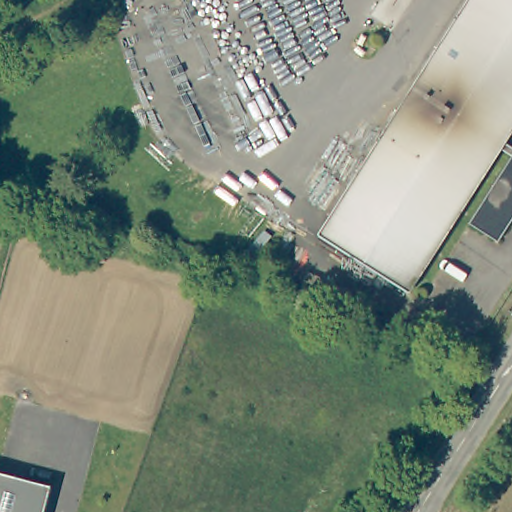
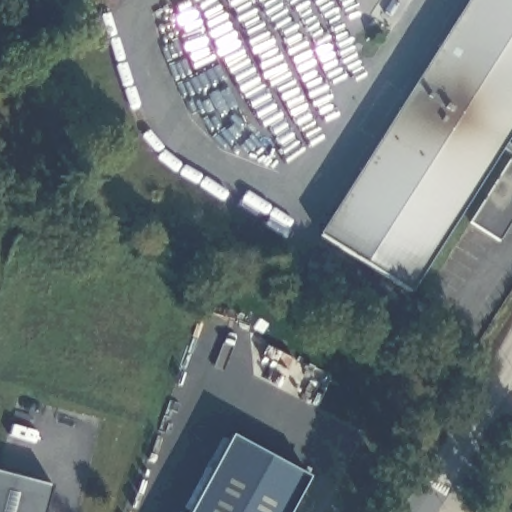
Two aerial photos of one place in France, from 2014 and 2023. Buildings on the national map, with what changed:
unchanged [(512,146),(512,219),(500,237),(470,219),(511,154),(498,146),(408,289),(318,232),(467,0),(512,0),(512,124),(502,139),(512,146)]
new [(191,512),(232,435),(308,476),(289,512),(191,512)]
unchanged [(47,512),(0,512),(0,473),(53,487),(47,512)]

